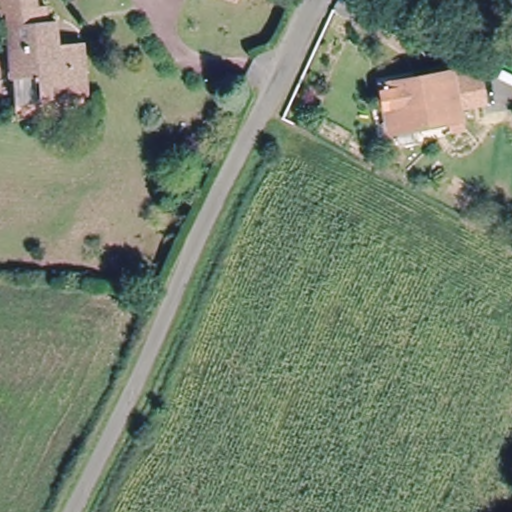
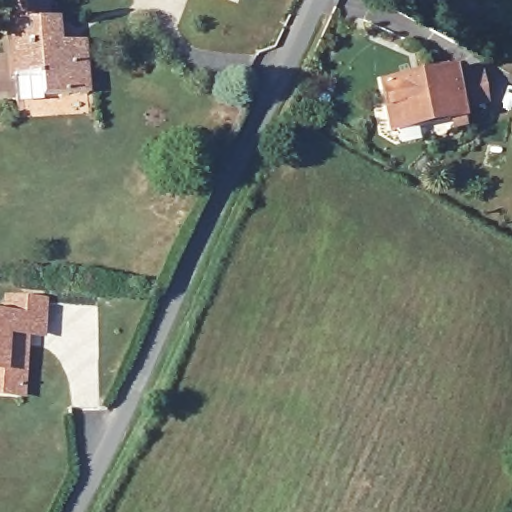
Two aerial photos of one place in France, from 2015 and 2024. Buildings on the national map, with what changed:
unchanged [(40,1),(49,0),(51,15),(59,15),(61,40),(86,39),(90,88),(45,92),(43,68),(14,70),(9,5),(2,5),(2,0),(40,0),(40,1)]
unchanged [(461,113),(393,125),(383,79),(431,70),(452,66),(461,113)]
new [(7,318),(9,300),(46,303),(43,335),(17,333),(16,345),(25,345),(22,381),(21,395),(0,393),(0,317),(7,318)]

